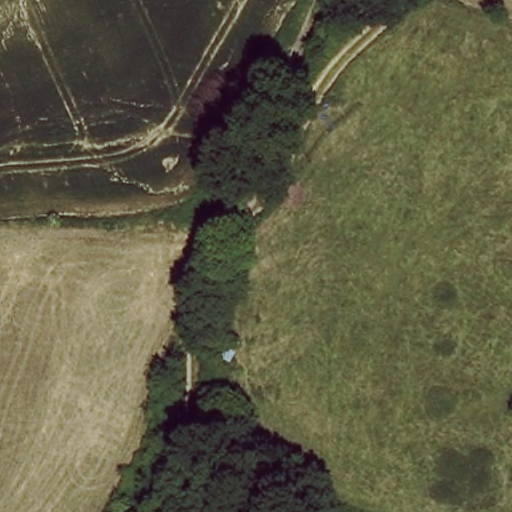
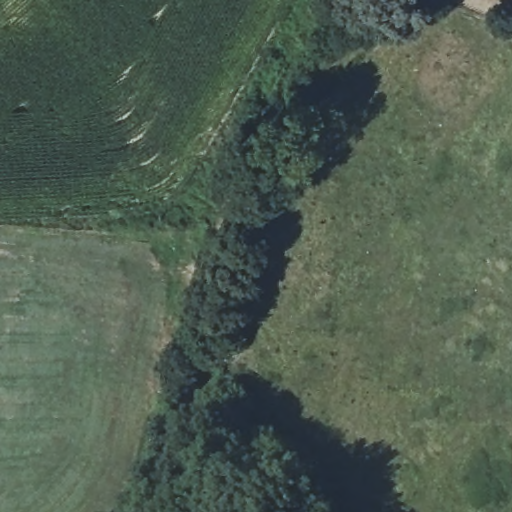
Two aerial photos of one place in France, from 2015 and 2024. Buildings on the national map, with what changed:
[]

